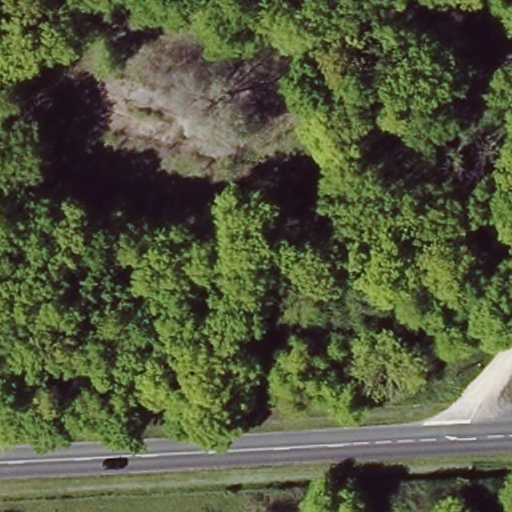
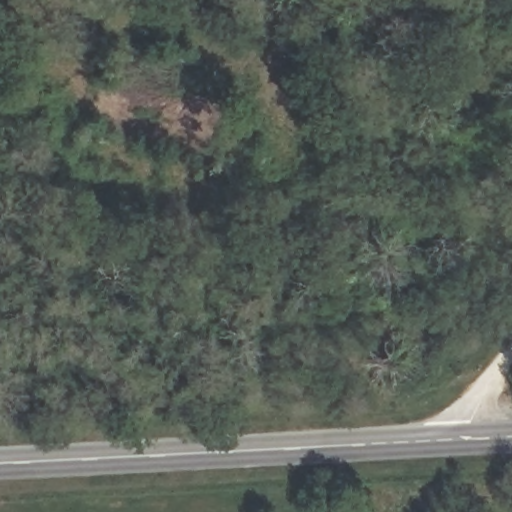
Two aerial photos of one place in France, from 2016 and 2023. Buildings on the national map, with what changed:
[]

